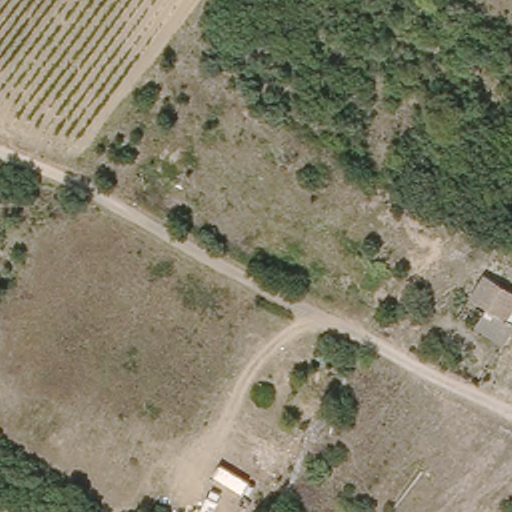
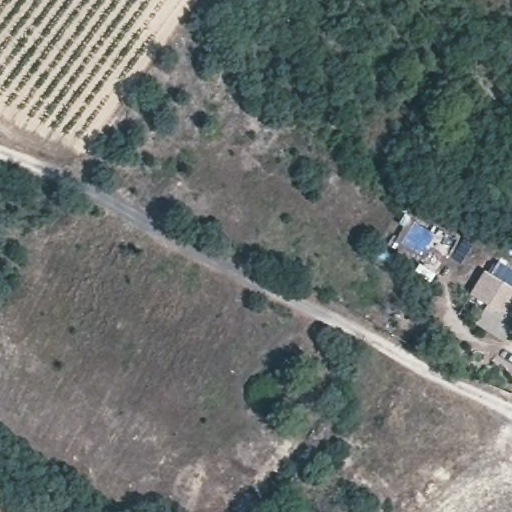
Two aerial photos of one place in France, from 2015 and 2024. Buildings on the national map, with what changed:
unchanged [(480,303),(462,293),(492,260),(512,268),(512,335),(509,343),(470,321),(477,308),(480,303)]

